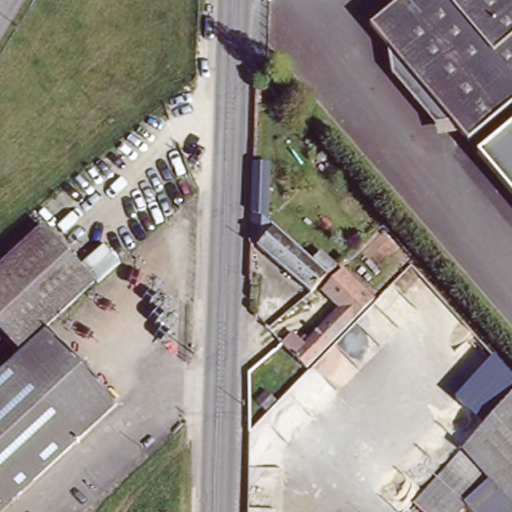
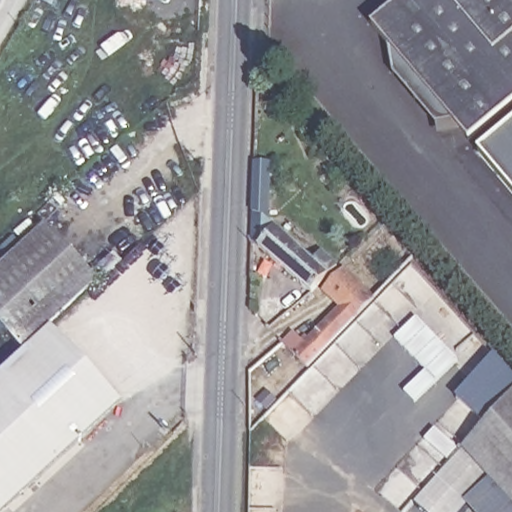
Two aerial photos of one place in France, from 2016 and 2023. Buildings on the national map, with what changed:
unchanged [(467,136),(452,118),(435,120),(431,92),(412,94),(409,67),(392,69),(389,41),(371,20),(395,0),(512,0),(512,104),(510,100),(467,136)]
unchanged [(467,140),(437,140),(435,120),(452,118),(467,136),(510,100),(512,104),(512,193),(467,140)]
unchanged [(251,238),(252,185),(253,163),(269,165),(267,220),(311,259),(320,249),(337,264),(311,291),(251,238)]
unchanged [(0,329),(0,265),(41,226),(91,277),(17,346),(0,329)]
unchanged [(339,253),(345,246),(349,251),(343,257),(339,253)]
unchanged [(307,367),(283,344),(294,332),(304,342),(331,313),(313,296),(332,277),(362,307),(307,367)]
unchanged [(0,370),(47,326),(117,401),(0,508),(0,370)]
unchanged [(470,446),(469,445),(489,420),(465,392),(499,360),(512,376),(512,493),(470,446)]
unchanged [(470,446),(512,493),(512,512),(473,512),(462,501),(451,512),(429,512),(414,497),(470,446)]

